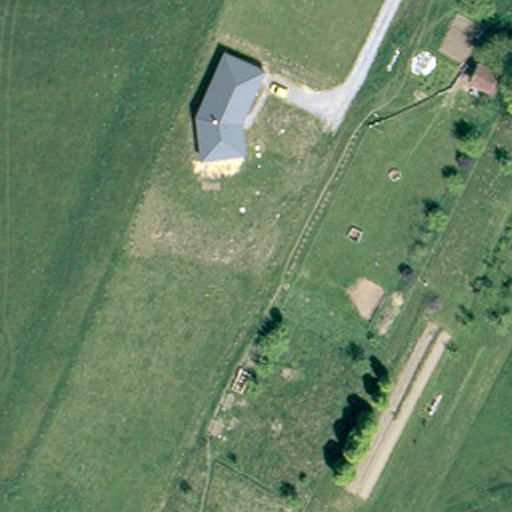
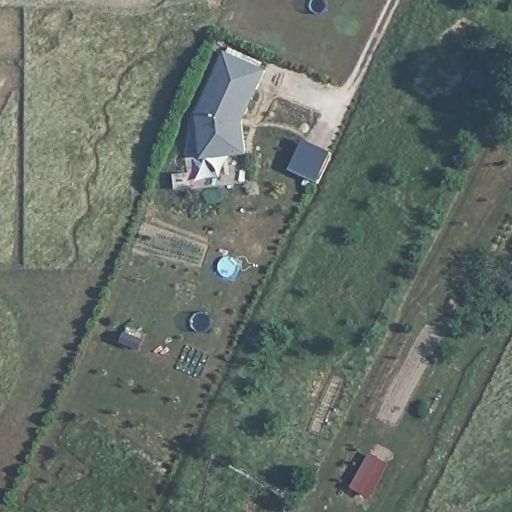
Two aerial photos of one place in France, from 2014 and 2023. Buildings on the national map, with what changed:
unchanged [(202,159),(195,116),(225,51),(265,70),(241,122),(246,153),(202,159)]
unchanged [(490,93),(469,83),(475,64),(498,75),(490,93)]
new [(303,140),(330,152),(317,182),(290,169),(303,140)]

